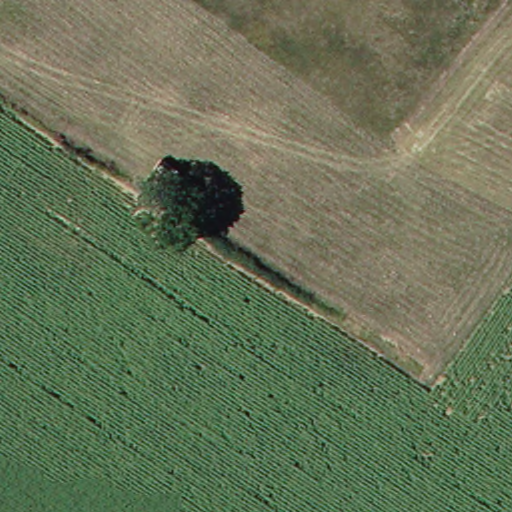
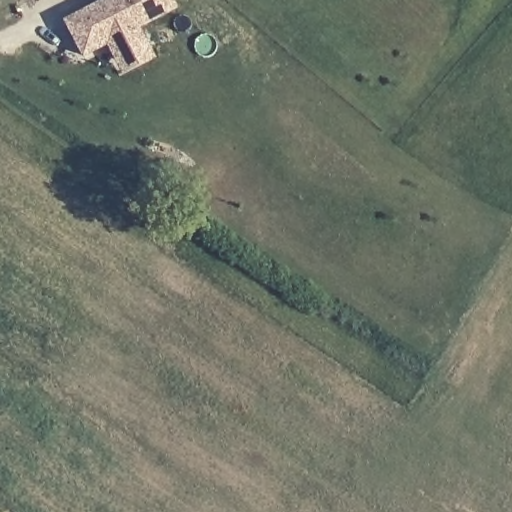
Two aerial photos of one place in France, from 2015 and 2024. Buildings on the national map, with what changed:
new [(126,75),(119,62),(110,45),(85,58),(67,24),(94,10),(113,0),(173,0),(178,9),(140,30),(148,46),(156,60),(126,75)]

